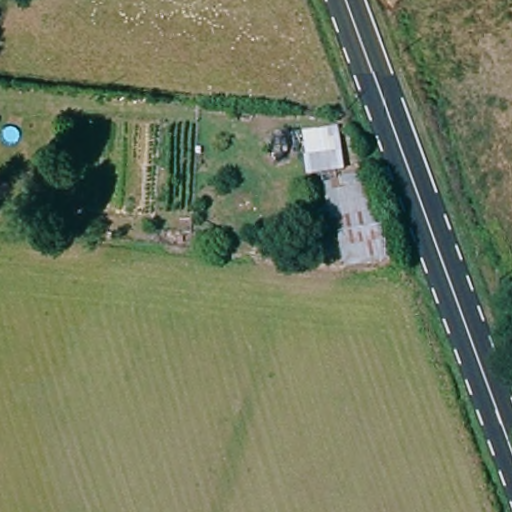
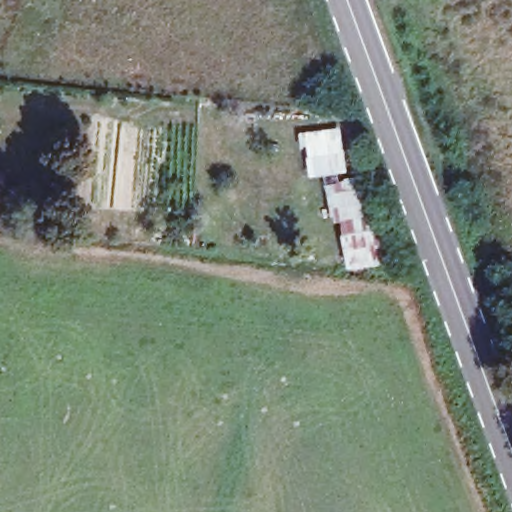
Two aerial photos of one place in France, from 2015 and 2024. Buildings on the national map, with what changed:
unchanged [(337,151),(344,149),(349,184),(367,184),(377,227),(387,226),(392,258),(350,266),(317,160),(326,156),(319,130),(335,126),(337,151)]

